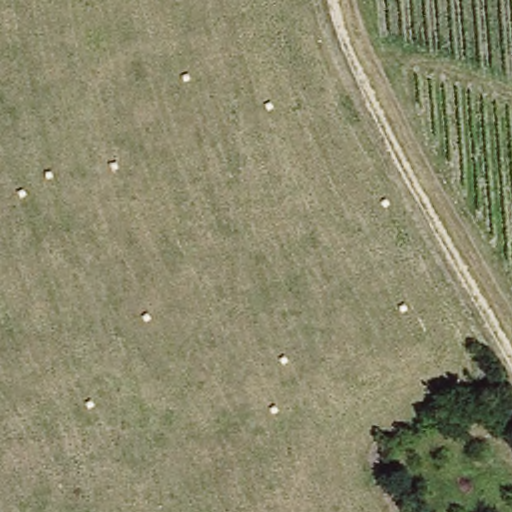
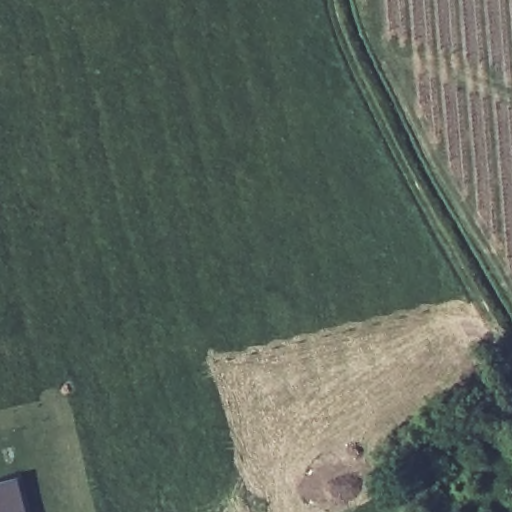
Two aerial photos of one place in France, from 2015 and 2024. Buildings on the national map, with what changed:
new [(0,482),(16,478),(25,512),(0,512),(0,482)]

